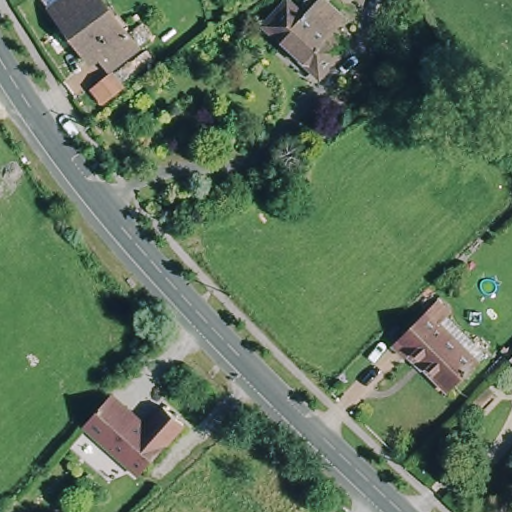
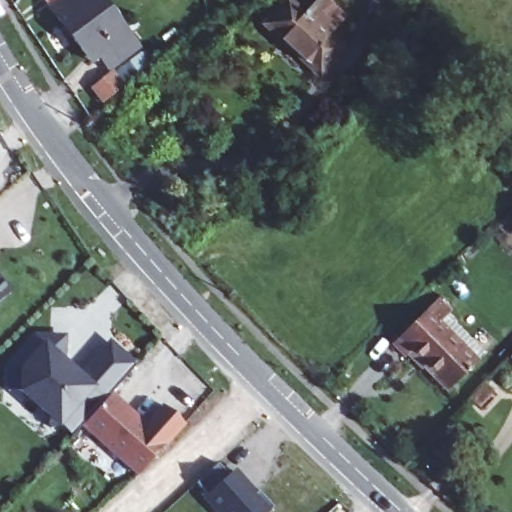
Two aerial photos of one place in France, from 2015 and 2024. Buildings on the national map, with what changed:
unchanged [(100,56),(93,46),(87,50),(57,2),(61,0),(113,0),(134,32),(100,56)]
unchanged [(312,0),(316,0),(338,20),(327,31),(339,43),(311,71),(260,26),(282,1),(299,15),(312,0)]
unchanged [(92,86),(82,73),(102,59),(112,72),(92,86)]
new [(0,306),(0,275),(15,293),(0,306)]
unchanged [(478,362),(481,365),(449,393),(409,353),(405,357),(394,346),(435,306),(441,300),(454,313),(448,319),(485,355),(478,362)]
new [(87,426),(82,422),(72,435),(62,425),(59,428),(57,425),(51,426),(42,412),(21,393),(19,390),(6,390),(6,366),(35,334),(66,335),(65,356),(78,370),(109,340),(137,365),(114,391),(116,395),(87,426)]
unchanged [(152,424),(169,406),(190,425),(143,474),(87,426),(116,395),(152,424)]
new [(222,459),(232,471),(237,466),(259,490),(263,487),(277,503),(268,512),(227,512),(209,492),(211,491),(200,480),(222,459)]

